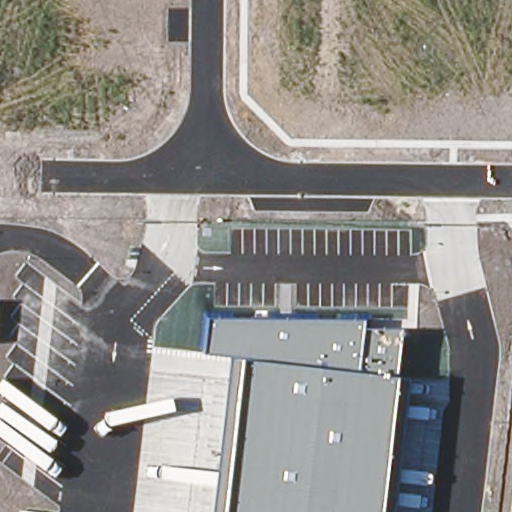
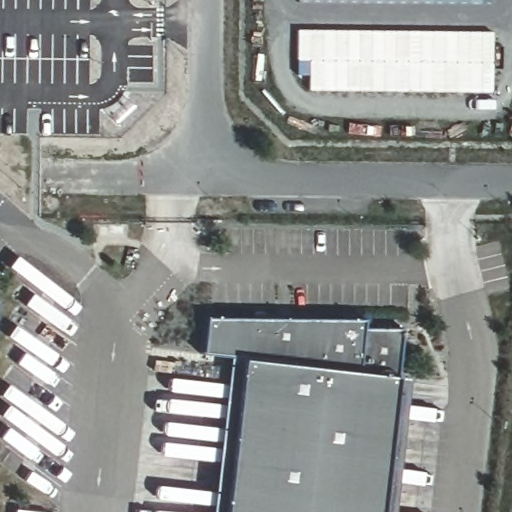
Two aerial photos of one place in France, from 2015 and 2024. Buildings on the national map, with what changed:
new [(298,1),(298,0),(492,0),(492,4),(298,1)]
new [(492,32),(492,92),(308,89),(309,75),(297,75),(297,30),(492,32)]
unchanged [(203,351),(207,316),(364,319),(363,329),(402,327),(397,376),(381,512),(213,512),(233,354),(203,351)]

